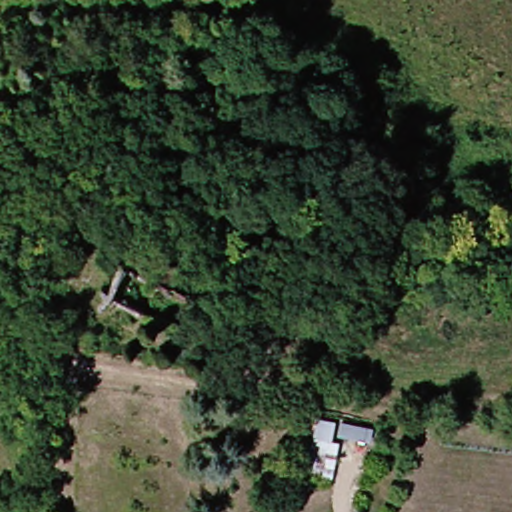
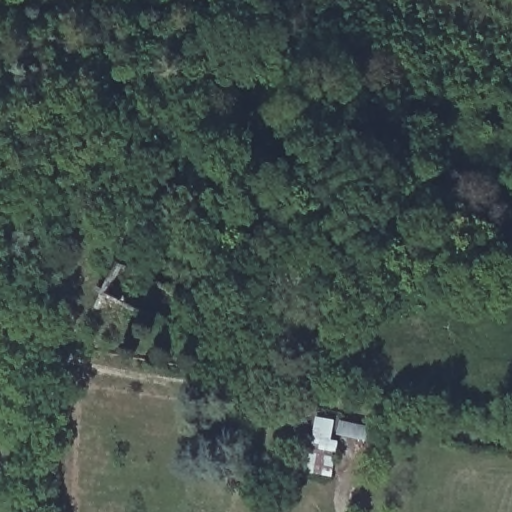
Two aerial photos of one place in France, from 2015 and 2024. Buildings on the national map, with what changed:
unchanged [(337,419),(328,445),(336,451),(330,481),(311,477),(322,416),(337,419)]

